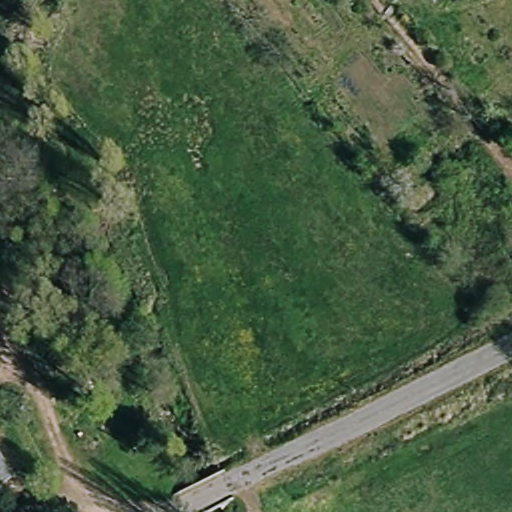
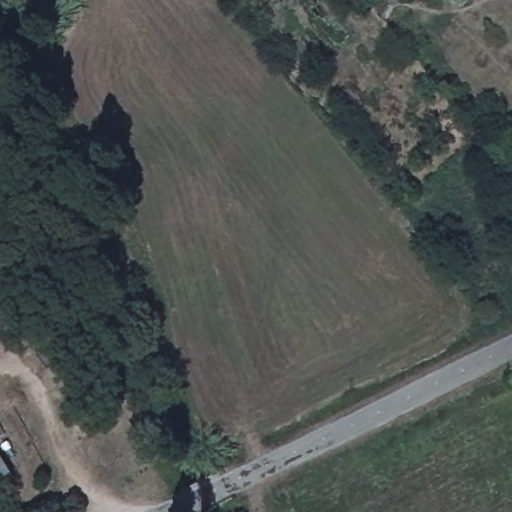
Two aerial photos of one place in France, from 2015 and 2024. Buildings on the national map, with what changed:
unchanged [(0,488),(0,460),(13,481),(0,488)]

